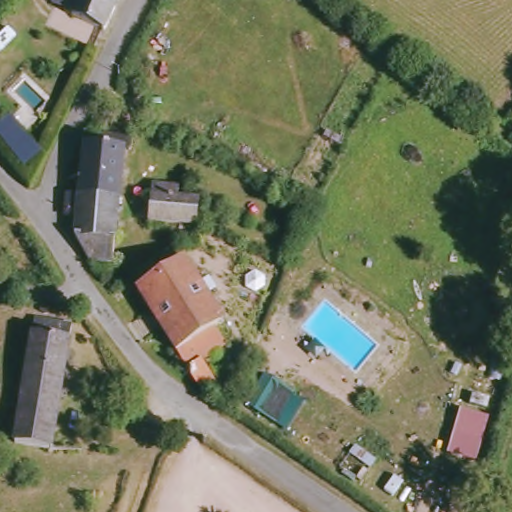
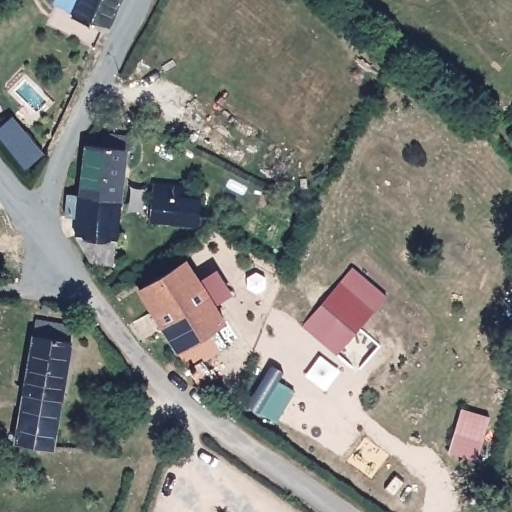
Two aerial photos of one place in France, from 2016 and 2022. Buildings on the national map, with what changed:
unchanged [(112,41),(80,25),(82,21),(64,14),(69,0),(131,0),(112,41)]
unchanged [(6,107),(0,111),(10,125),(0,131),(0,93),(6,107)]
unchanged [(45,155),(27,175),(0,136),(0,131),(10,125),(18,122),(45,155)]
unchanged [(107,147),(108,139),(112,134),(137,137),(136,150),(130,150),(116,268),(97,262),(81,240),(83,219),(71,217),(73,195),(85,196),(91,145),(107,147)]
unchanged [(180,182),(180,194),(201,196),(200,220),(155,217),(157,180),(180,182)]
unchanged [(227,351),(203,363),(218,387),(202,397),(177,357),(136,292),(186,260),(225,323),(215,330),(227,351)]
new [(337,355),(302,326),(351,270),(387,296),(337,355)]
unchanged [(28,445),(41,322),(75,326),(64,450),(28,445)]
unchanged [(246,404),(265,374),(295,395),(305,403),(288,432),(246,404)]
unchanged [(462,412),(490,420),(476,464),(448,454),(462,412)]

